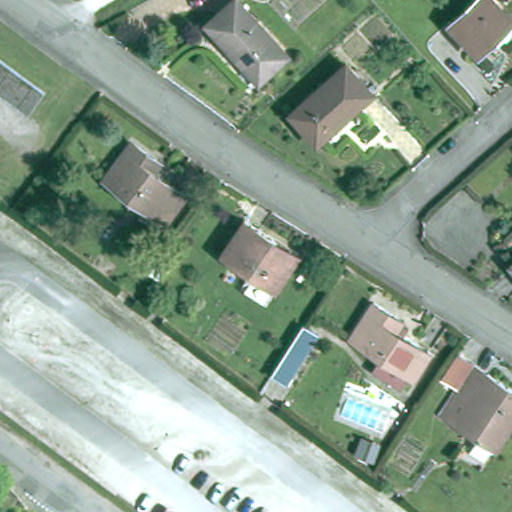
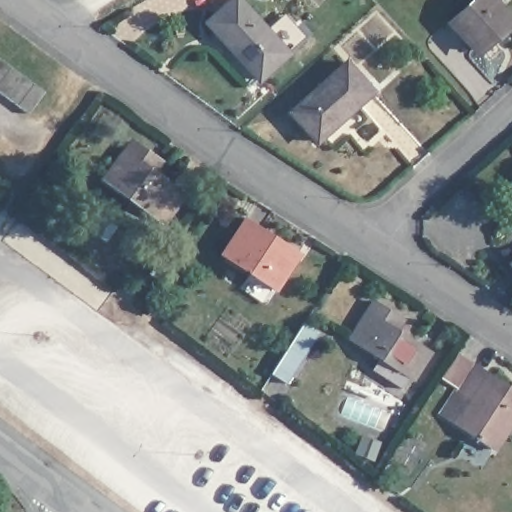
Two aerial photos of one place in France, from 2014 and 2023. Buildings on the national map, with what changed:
unchanged [(206,16),(226,0),(241,0),(288,50),(256,73),(206,16)]
unchanged [(471,47),(447,19),(468,0),(495,0),(510,17),(491,36),(487,32),(471,47)]
unchanged [(0,60),(45,93),(28,116),(0,95),(0,60)]
unchanged [(368,91),(316,137),(290,108),(342,65),(368,91)]
unchanged [(186,198),(164,224),(106,179),(133,143),(161,163),(152,174),(186,198)]
unchanged [(246,218),(296,250),(275,284),(223,252),(246,218)]
unchanged [(434,356),(408,394),(376,372),(384,361),(354,340),(379,304),(416,331),(410,340),(434,356)]
unchanged [(299,314),(316,325),(284,375),(269,366),(299,314)]
unchanged [(512,388),(512,436),(502,454),(447,417),(478,366),(512,388)]

